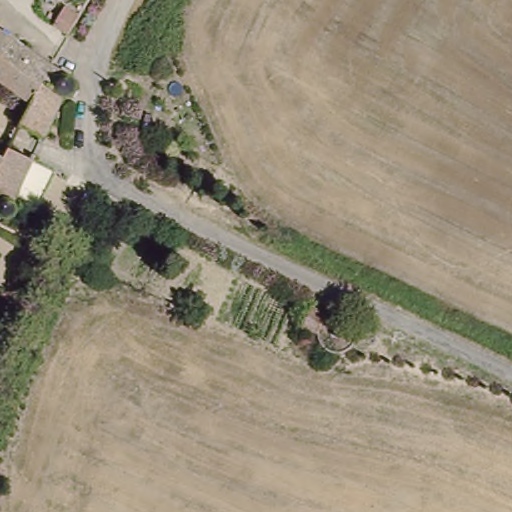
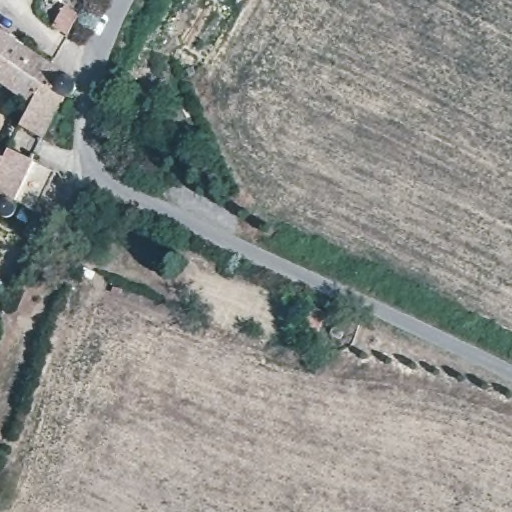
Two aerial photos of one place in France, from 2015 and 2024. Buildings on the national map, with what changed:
unchanged [(47,25),(57,6),(71,14),(61,34),(47,25)]
unchanged [(10,96),(16,88),(0,77),(0,24),(85,81),(85,84),(83,89),(80,92),(72,88),(52,136),(27,125),(32,111),(10,96)]
unchanged [(15,148),(60,172),(44,211),(27,203),(28,204),(29,209),(27,214),(23,218),(18,219),(3,211),(0,216),(0,149),(10,155),(15,148)]

